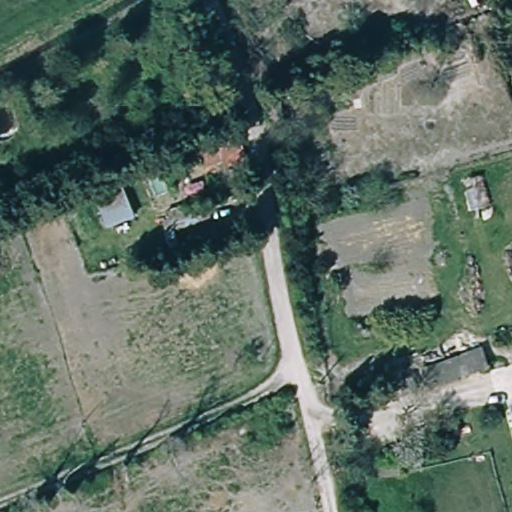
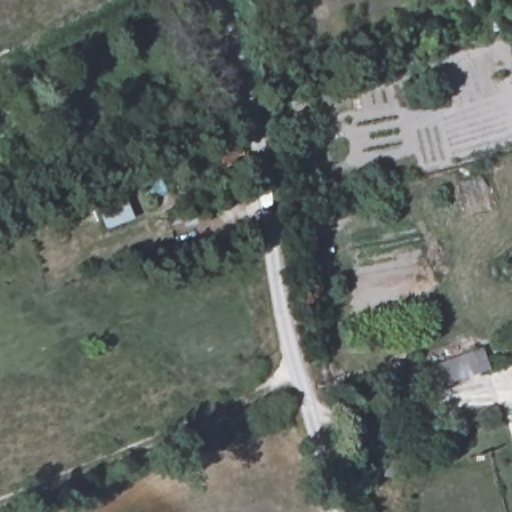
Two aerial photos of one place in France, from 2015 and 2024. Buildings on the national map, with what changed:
unchanged [(241,130),(247,163),(228,168),(227,162),(206,165),(205,162),(187,167),(187,161),(177,162),(175,144),(241,130)]
unchanged [(106,230),(95,202),(125,191),(135,220),(106,230)]
unchanged [(169,234),(164,211),(209,199),(213,222),(169,234)]
unchanged [(449,385),(442,361),(485,348),(493,372),(449,385)]
unchanged [(422,370),(425,384),(413,388),(408,374),(422,370)]

